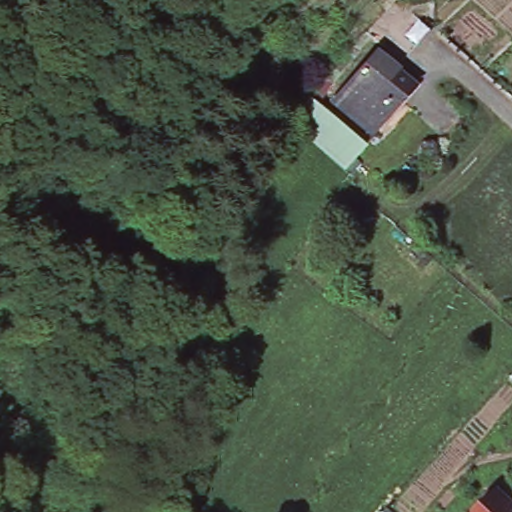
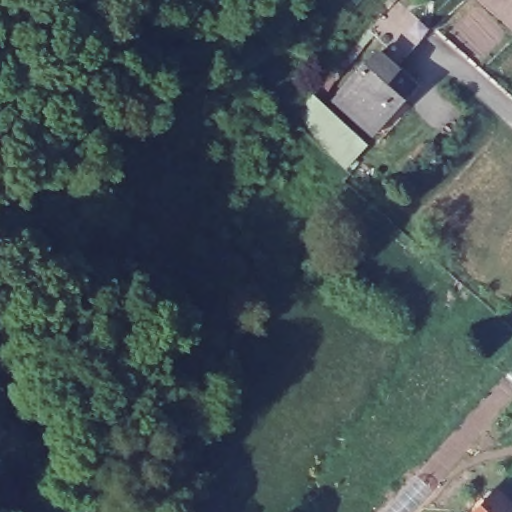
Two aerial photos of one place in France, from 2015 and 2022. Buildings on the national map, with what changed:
unchanged [(395,6),(422,29),(399,56),(372,33),(395,6)]
unchanged [(376,53),(412,84),(372,129),(336,98),(376,53)]
unchanged [(297,116),(314,97),(364,145),(352,158),(342,167),(293,120),(297,116)]
unchanged [(512,508),(512,512),(480,512),(497,493),(512,508)]

